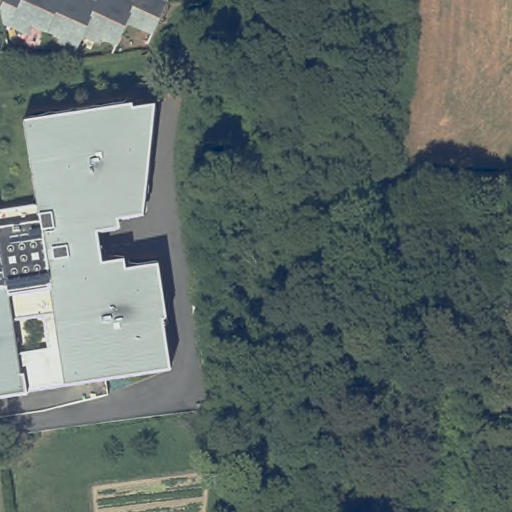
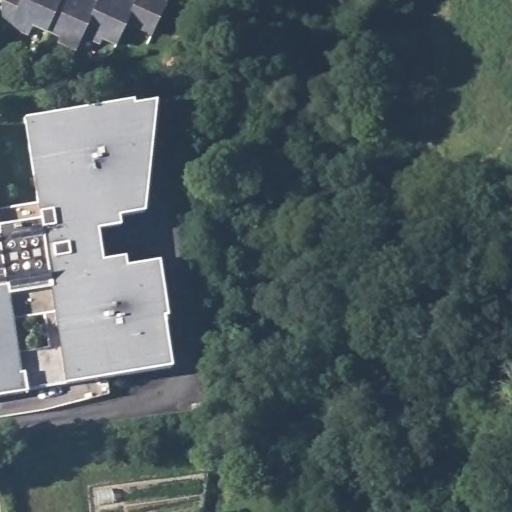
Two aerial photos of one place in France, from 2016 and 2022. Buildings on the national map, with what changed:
unchanged [(3,0),(84,0),(92,4),(94,0),(151,0),(164,5),(149,39),(121,27),(113,44),(99,39),(97,40),(80,33),(70,51),(55,44),(57,39),(43,33),(39,37),(26,31),(23,37),(1,26),(0,27),(0,7),(3,0)]
unchanged [(143,217),(117,219),(119,229),(97,233),(101,264),(118,261),(123,259),(125,271),(156,267),(172,373),(0,400),(0,206),(36,199),(24,119),(133,103),(133,106),(154,104),(143,217)]

